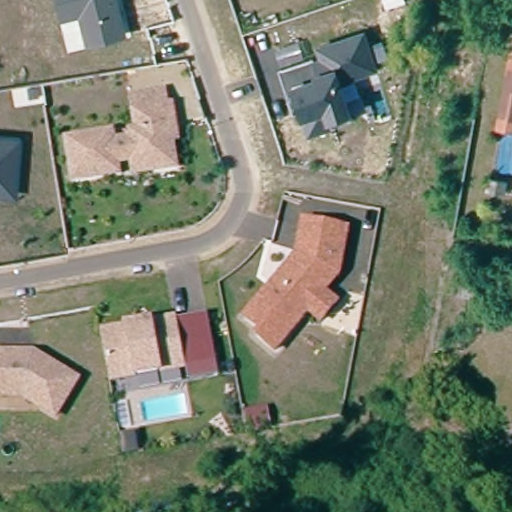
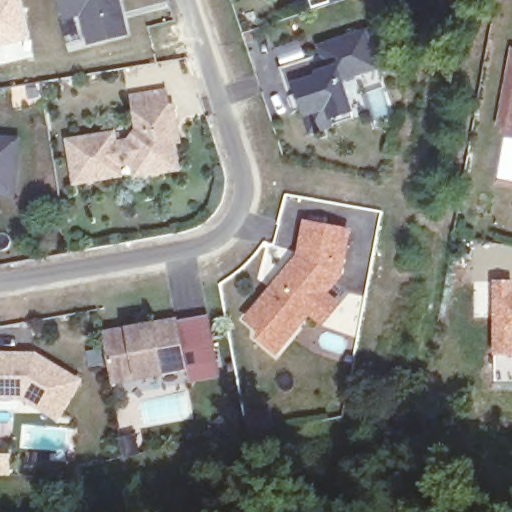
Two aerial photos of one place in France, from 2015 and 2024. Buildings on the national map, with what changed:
new [(0,47),(0,0),(20,0),(30,39),(0,47)]
unchanged [(86,44),(80,15),(59,19),(55,0),(121,0),(129,34),(86,44)]
unchanged [(379,68),(344,77),(354,120),(307,133),(300,109),(293,111),(280,67),(320,54),(317,43),(368,28),(379,68)]
unchanged [(512,43),(512,123),(494,119),(510,43),(512,43)]
unchanged [(131,159),(117,163),(120,178),(75,187),(67,146),(112,137),(113,145),(128,143),(135,133),(136,132),(133,115),(170,108),(174,126),(177,143),(172,144),(177,169),(151,175),(135,178),(131,159)]
unchanged [(16,197),(0,195),(0,133),(18,134),(16,197)]
unchanged [(326,322),(313,310),(280,351),(262,337),(266,331),(250,318),(272,292),(279,284),(302,255),(308,222),(350,229),(343,274),(328,292),(341,303),(326,322)]
unchanged [(480,314),(466,312),(478,262),(491,264),(480,314)]
new [(512,279),(512,354),(491,353),(490,279),(512,279)]
unchanged [(218,364),(110,385),(101,330),(178,314),(179,319),(209,314),(218,364)]
unchanged [(82,378),(61,414),(27,394),(0,393),(0,351),(18,352),(38,352),(82,378)]

